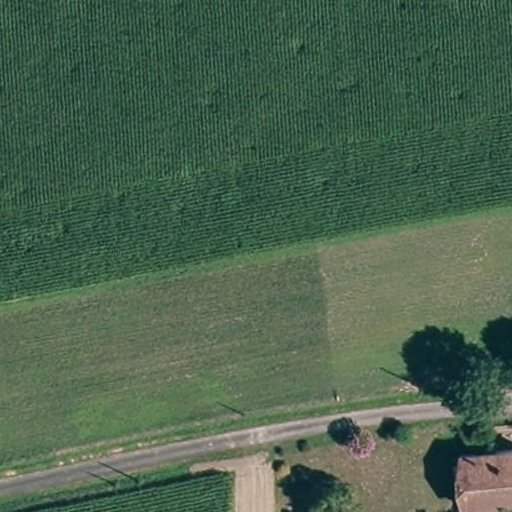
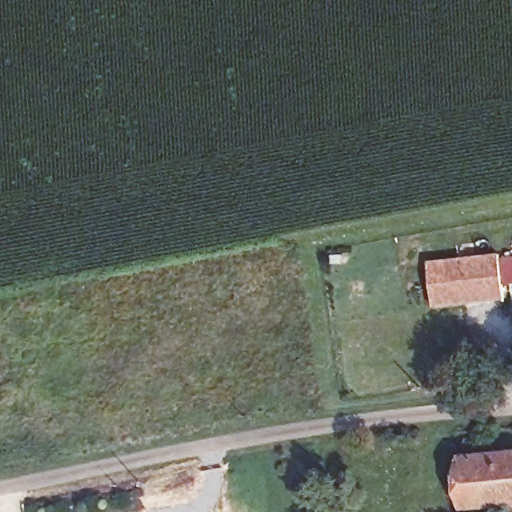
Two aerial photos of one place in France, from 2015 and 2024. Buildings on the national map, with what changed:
new [(512,259),(512,283),(503,284),(505,301),(434,309),(430,262),(500,254),(500,260),(512,259)]
unchanged [(461,507),(460,457),(512,452),(512,512),(510,512),(510,505),(461,507)]

